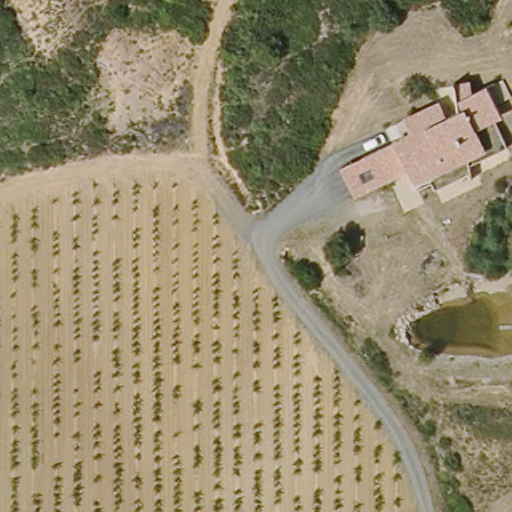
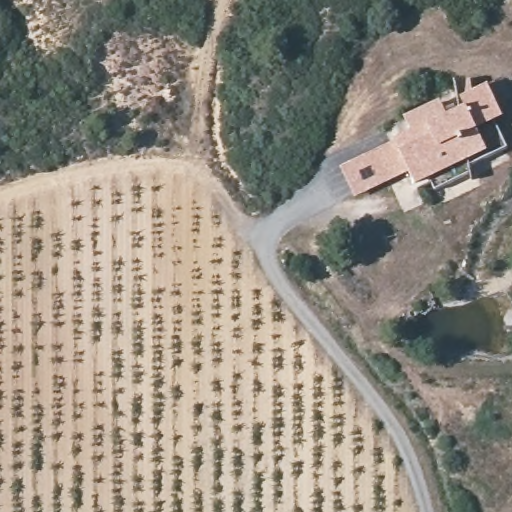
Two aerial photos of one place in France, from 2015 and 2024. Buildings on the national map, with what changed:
unchanged [(340,169),(390,142),(406,133),(401,118),(446,99),(441,89),(466,78),(473,91),(490,84),(504,116),(493,125),(504,147),(488,154),(417,188),(410,173),(352,198),(340,169)]

